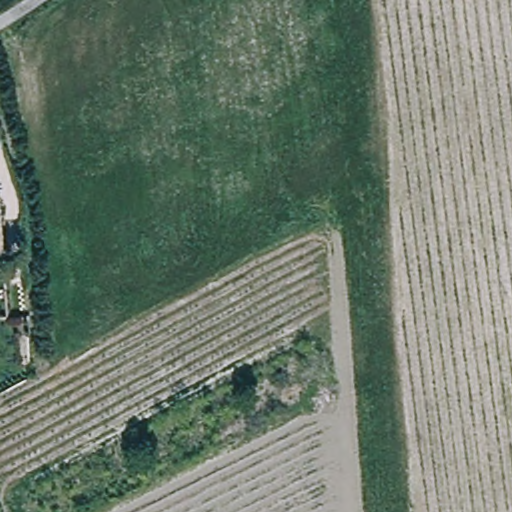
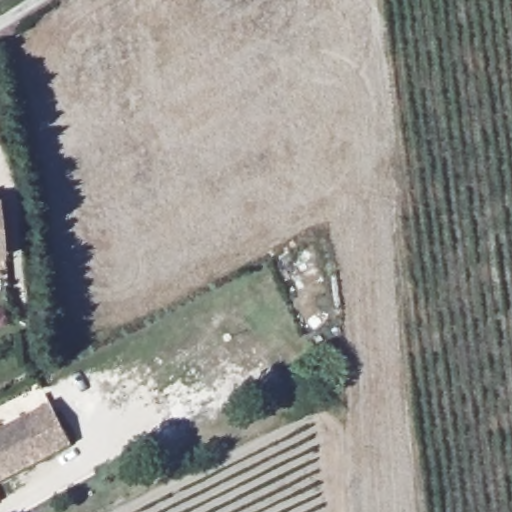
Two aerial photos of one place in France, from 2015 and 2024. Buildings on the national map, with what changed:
unchanged [(19,202),(22,257),(0,258),(0,202),(19,202)]
new [(0,478),(0,427),(47,403),(69,443),(0,478)]

